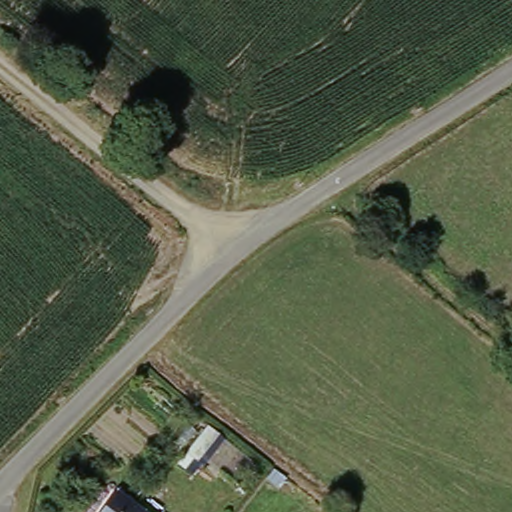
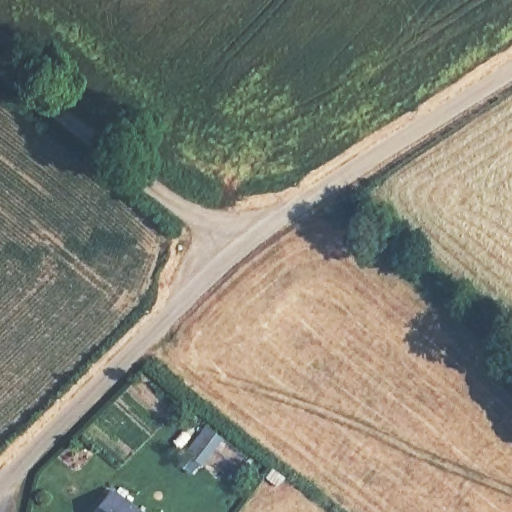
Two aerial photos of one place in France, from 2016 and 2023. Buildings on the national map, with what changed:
unchanged [(225,439),(204,464),(194,455),(213,430),(225,439)]
unchanged [(143,512),(107,512),(120,495),(143,512)]

